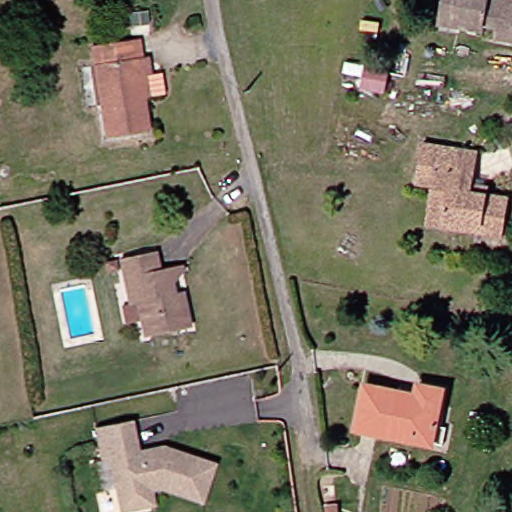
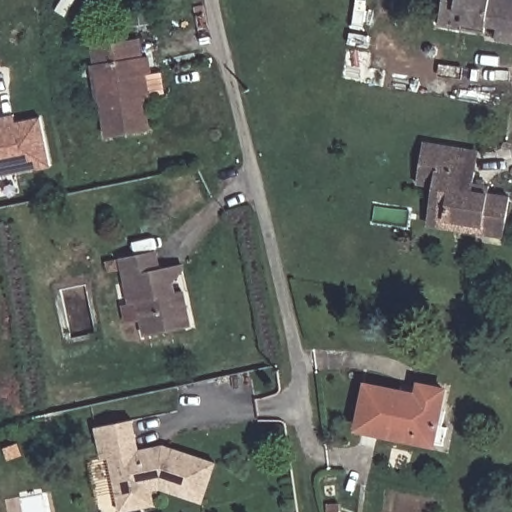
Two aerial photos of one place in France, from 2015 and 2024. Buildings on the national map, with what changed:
unchanged [(448,0),(512,0),(512,40),(503,38),(505,25),(492,22),(491,28),(467,24),(445,19),(447,8),(448,0)]
unchanged [(146,57),(149,75),(146,76),(150,96),(142,97),(147,129),(107,135),(92,52),(92,49),(138,41),(138,43),(141,58),(146,57)]
new [(0,119),(40,110),(51,167),(0,178),(0,119)]
unchanged [(419,182),(426,143),(460,148),(480,151),(476,173),(474,190),(511,196),(503,238),(485,235),(428,225),(435,185),(419,182)]
unchanged [(129,305),(120,261),(156,254),(158,265),(162,270),(182,265),(185,269),(172,281),(175,295),(184,294),(190,324),(143,335),(140,321),(133,323),(129,305)]
unchanged [(117,272),(107,274),(105,264),(115,262),(117,272)]
unchanged [(434,443),(358,428),(366,385),(418,396),(420,384),(445,389),(434,443)]
unchanged [(134,512),(113,512),(112,501),(104,461),(97,463),(91,431),(129,424),(134,454),(146,452),(159,450),(211,467),(197,507),(155,493),(146,494),(149,509),(134,512)]

